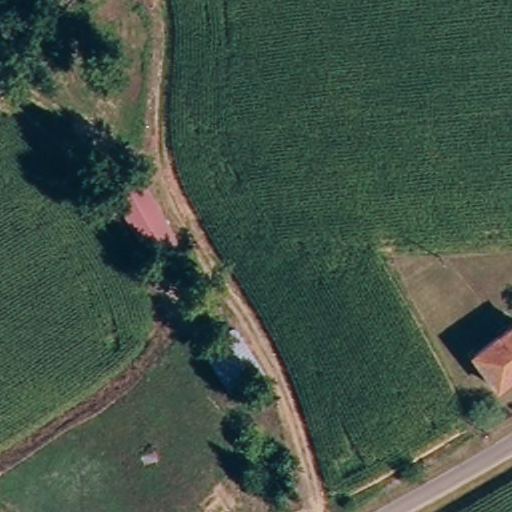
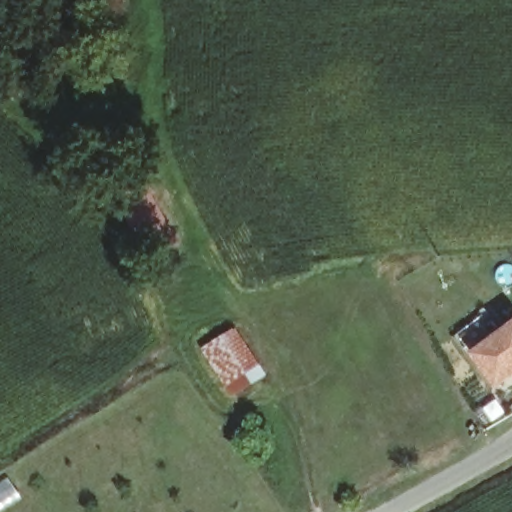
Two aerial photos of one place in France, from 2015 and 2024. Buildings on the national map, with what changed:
unchanged [(181,250),(148,265),(117,207),(149,191),(181,250)]
unchanged [(496,388),(473,354),(512,327),(512,378),(496,388)]
new [(266,376),(233,397),(203,350),(236,330),(266,376)]

